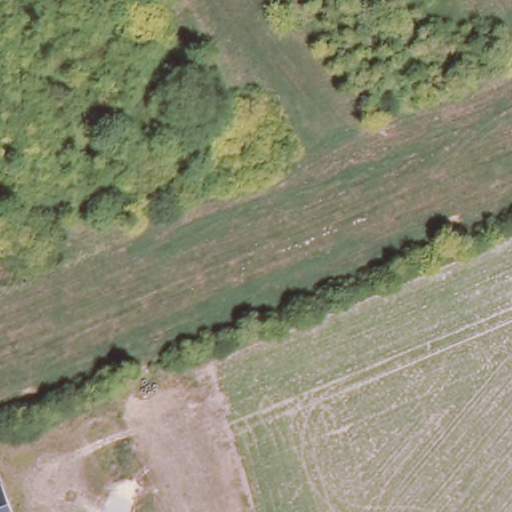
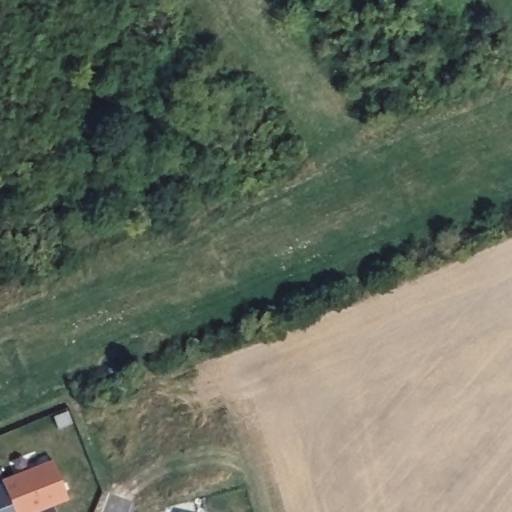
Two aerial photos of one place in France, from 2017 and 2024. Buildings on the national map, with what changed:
new [(0,481),(0,480),(52,461),(67,501),(39,512),(12,512),(0,483),(0,481)]
unchanged [(0,483),(12,512),(0,512),(0,483)]

